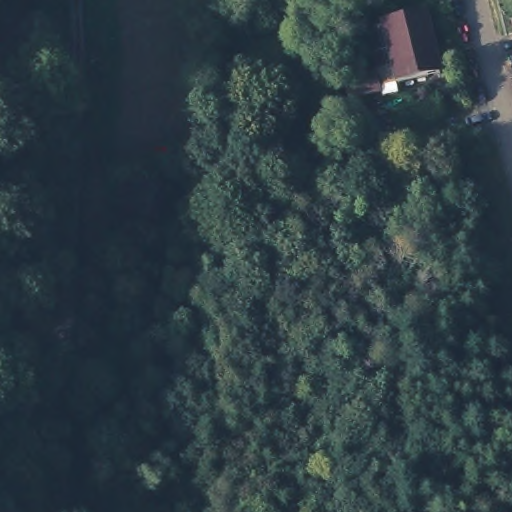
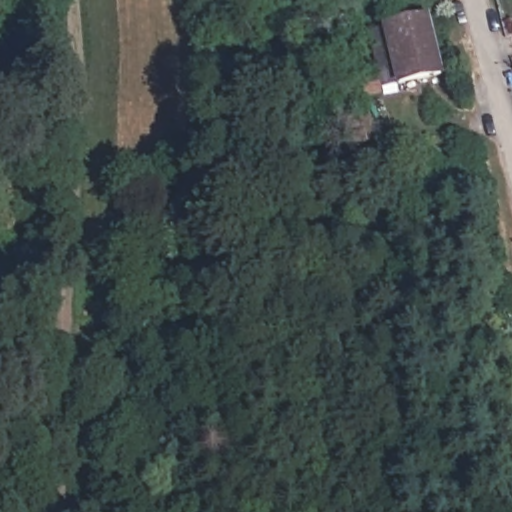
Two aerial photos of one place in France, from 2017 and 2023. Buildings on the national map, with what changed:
unchanged [(377,30),(394,25),(435,15),(450,74),(408,85),(407,81),(392,85),(377,30)]
unchanged [(355,82),(385,75),(390,94),(360,101),(355,82)]
unchanged [(352,141),(347,123),(367,118),(371,136),(352,141)]

